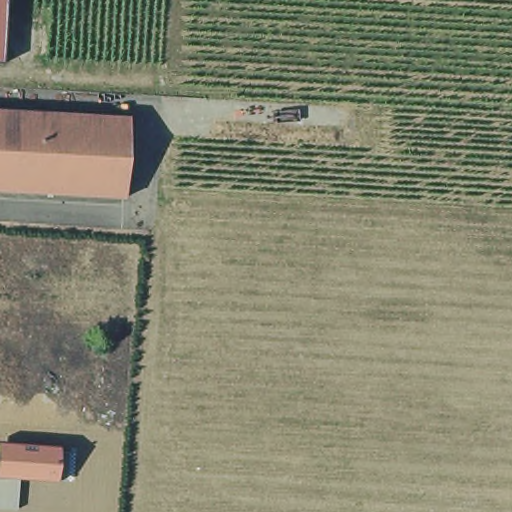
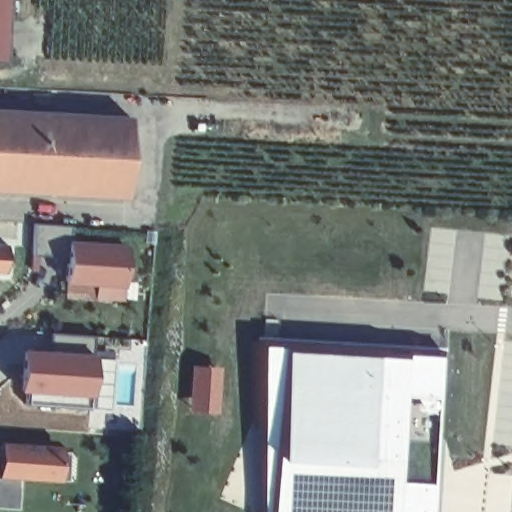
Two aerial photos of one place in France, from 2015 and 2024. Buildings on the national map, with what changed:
unchanged [(6,6),(3,53),(3,63),(0,63),(0,0),(6,0),(6,6)]
unchanged [(129,111),(124,192),(0,185),(0,104),(129,111)]
new [(70,256),(34,255),(34,223),(70,223),(71,237),(70,256)]
new [(131,241),(125,303),(95,300),(93,284),(70,281),(71,237),(131,241)]
new [(11,245),(10,273),(0,273),(0,244),(11,245)]
new [(92,355),(112,356),(108,408),(24,403),(28,349),(48,351),(49,331),(93,334),(92,355)]
new [(439,512),(261,512),(258,333),(449,346),(439,512)]
new [(223,364),(221,412),(192,410),(193,363),(223,364)]
unchanged [(67,478),(58,481),(20,479),(16,511),(0,509),(0,442),(59,446),(69,454),(67,478)]

